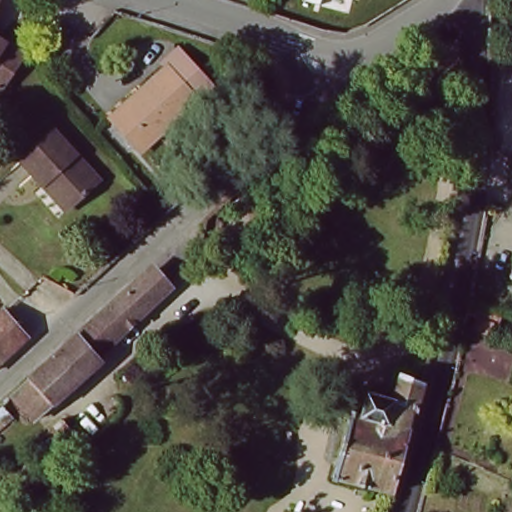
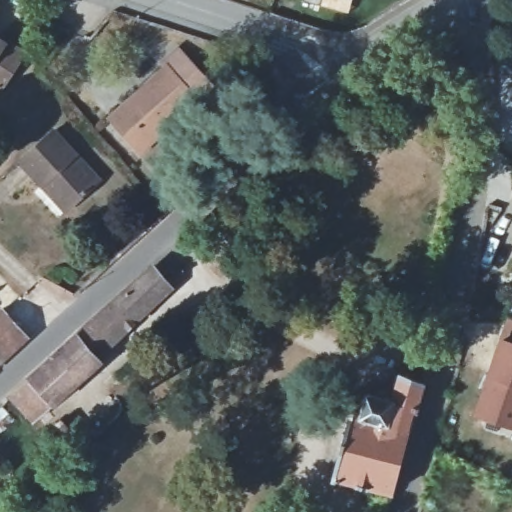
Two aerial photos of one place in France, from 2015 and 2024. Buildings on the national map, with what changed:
new [(354,11),(325,3),(313,0),(356,0),(354,11)]
unchanged [(0,92),(0,45),(21,57),(0,92)]
unchanged [(141,96),(168,73),(163,67),(179,54),(181,56),(213,92),(197,106),(199,109),(143,159),(116,129),(110,123),(141,96)]
unchanged [(43,183),(21,159),(54,128),(100,177),(70,205),(66,209),(43,183)]
unchanged [(160,198),(172,187),(177,192),(181,197),(169,208),(165,204),(160,198)]
unchanged [(30,376),(73,334),(131,280),(146,267),(161,269),(163,271),(176,287),(121,338),(101,357),(105,361),(91,372),(41,418),(15,390),(30,376)]
demolished [(471,303),(503,315),(500,322),(491,320),(487,332),(476,329),(481,315),(469,311),(471,303)]
unchanged [(23,330),(30,337),(28,338),(0,364),(0,312),(3,309),(23,330)]
new [(512,319),(512,428),(471,415),(486,376),(500,335),(506,317),(512,319)]
unchanged [(421,412),(417,411),(399,467),(398,470),(392,493),(331,477),(335,465),(328,463),(325,458),(330,440),(336,425),(340,423),(347,425),(352,412),(362,415),(369,392),(394,400),(402,373),(425,383),(421,412)]
unchanged [(71,451),(65,443),(50,428),(63,417),(77,432),(83,439),(71,451)]

